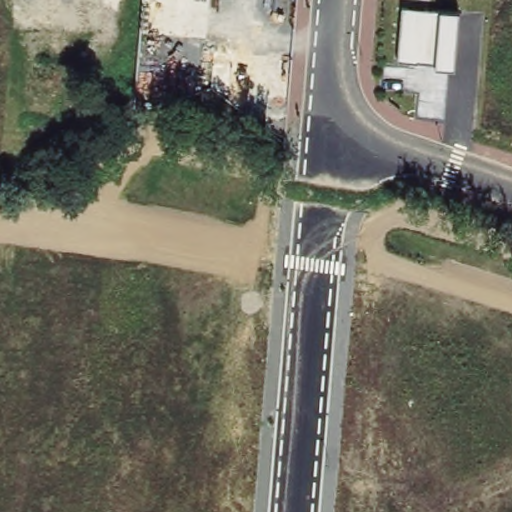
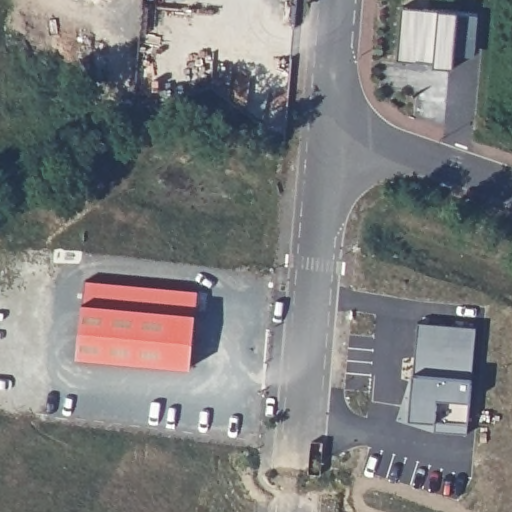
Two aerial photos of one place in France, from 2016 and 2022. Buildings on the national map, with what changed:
unchanged [(457,10),(452,69),(434,66),(395,61),(400,7),(439,9),(457,10)]
new [(86,277),(200,290),(190,366),(77,352),(86,277)]
new [(405,397),(412,398),(418,321),(477,326),(468,434),(435,431),(398,420),(399,415),(405,397)]

